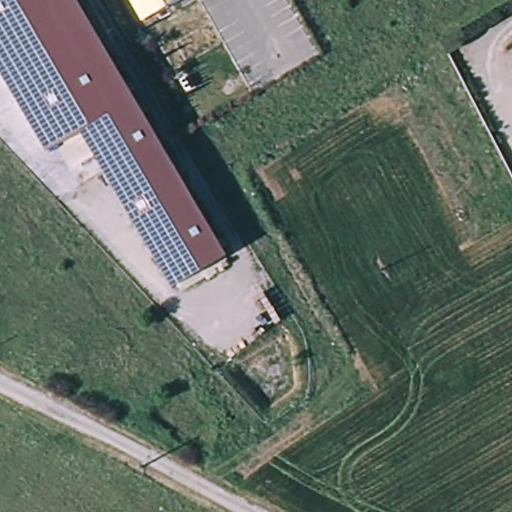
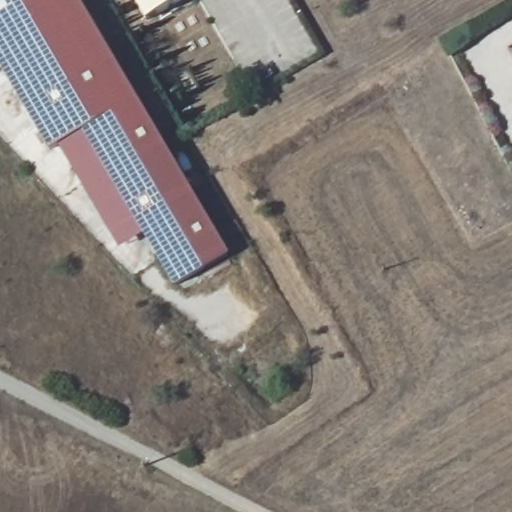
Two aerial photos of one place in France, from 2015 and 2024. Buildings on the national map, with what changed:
unchanged [(225,254),(167,284),(78,127),(43,147),(0,72),(0,0),(80,0),(225,254)]
unchanged [(148,19),(137,0),(181,0),(148,19)]

